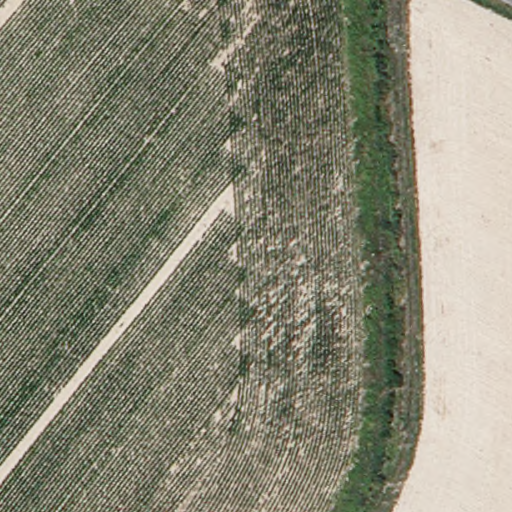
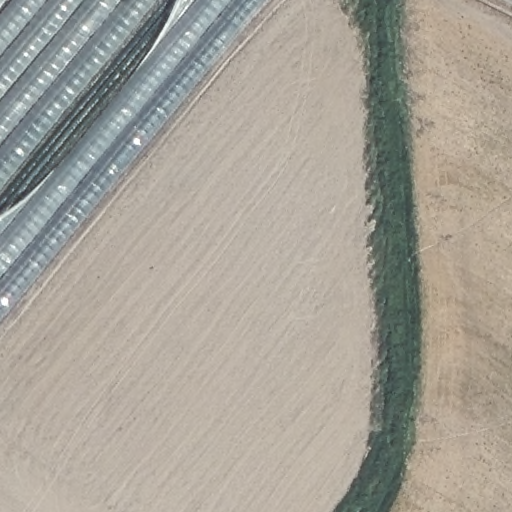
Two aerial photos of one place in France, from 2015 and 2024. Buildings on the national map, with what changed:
new [(276,0),(0,330),(0,0),(276,0)]

